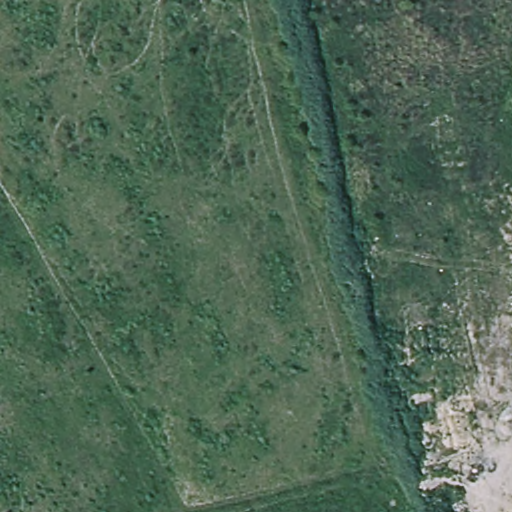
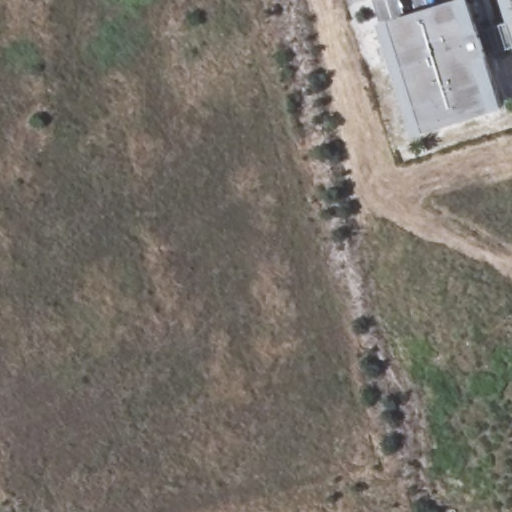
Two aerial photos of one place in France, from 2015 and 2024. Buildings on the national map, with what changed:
new [(501,107),(413,134),(378,25),(459,0),(468,0),(478,32),(509,22),(502,0),(512,0),(512,47),(485,56),(501,107)]

